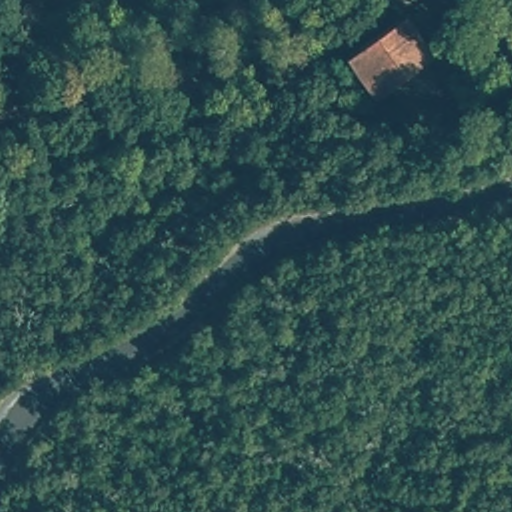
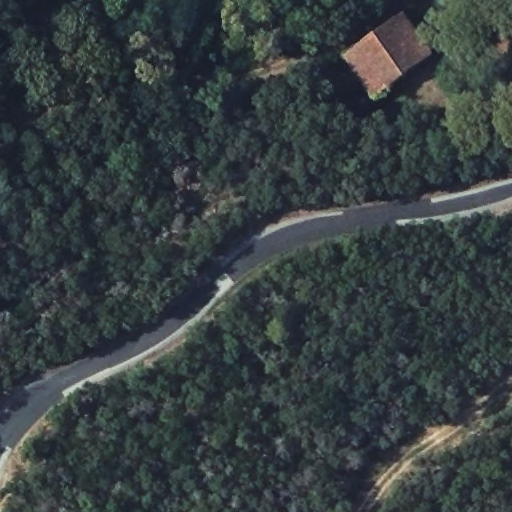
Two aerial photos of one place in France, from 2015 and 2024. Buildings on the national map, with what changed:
unchanged [(407,18),(433,54),(367,99),(344,61),(407,18)]

